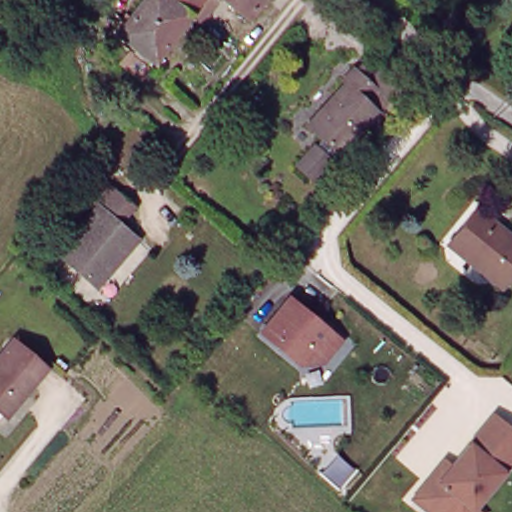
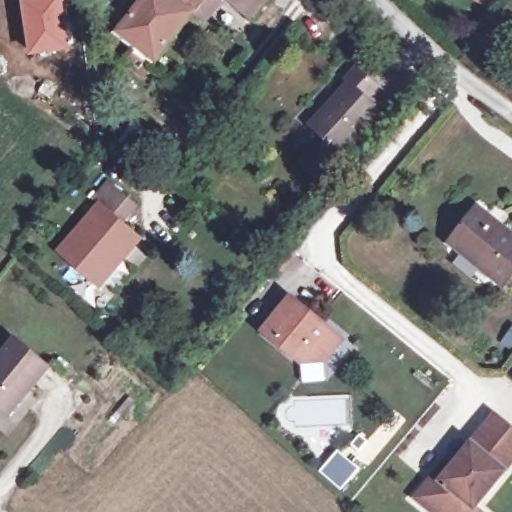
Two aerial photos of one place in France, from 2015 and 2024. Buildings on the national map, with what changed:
new [(72,51),(29,56),(22,13),(21,0),(64,0),(72,51)]
unchanged [(127,64),(140,49),(120,33),(145,0),(222,0),(205,22),(194,13),(159,63),(156,61),(144,77),(127,64)]
unchanged [(252,20),(229,0),(269,0),(252,20)]
unchanged [(302,168),(325,141),(310,127),(350,84),(347,82),(358,69),(370,81),(380,89),(369,100),(381,113),(342,156),(317,182),(302,168)]
unchanged [(100,292),(60,258),(100,211),(94,206),(110,188),(139,212),(122,230),(140,245),(100,292)]
unchanged [(460,246),(451,239),(465,222),(479,205),(512,231),(512,273),(505,282),(460,246)]
unchanged [(292,297),(343,340),(325,362),(302,365),(264,333),(292,297)]
unchanged [(6,417),(0,412),(0,358),(15,341),(47,369),(6,417)]
unchanged [(430,481),(442,466),(450,471),(492,421),(512,437),(512,462),(471,512),(422,512),(412,504),(430,481)]
new [(320,471),(338,451),(359,469),(340,490),(320,471)]

